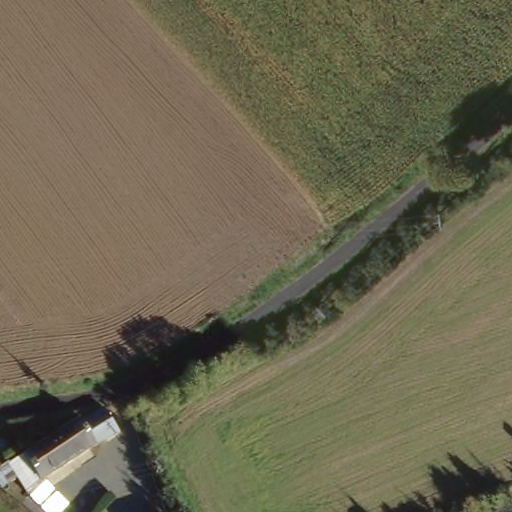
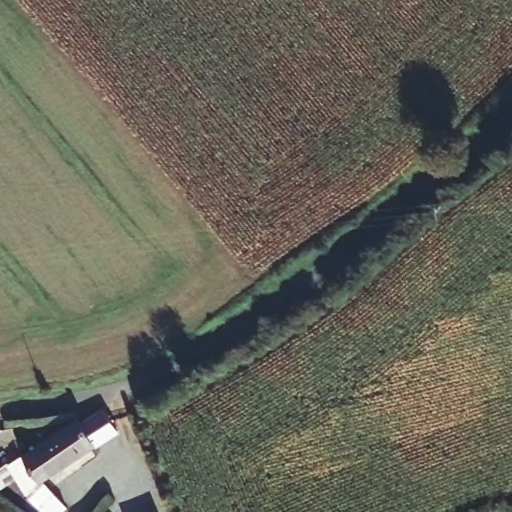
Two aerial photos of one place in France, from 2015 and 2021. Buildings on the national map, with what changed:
unchanged [(0,482),(0,468),(22,457),(61,432),(94,409),(96,412),(102,420),(103,422),(112,434),(104,439),(37,482),(14,492),(0,482)]

